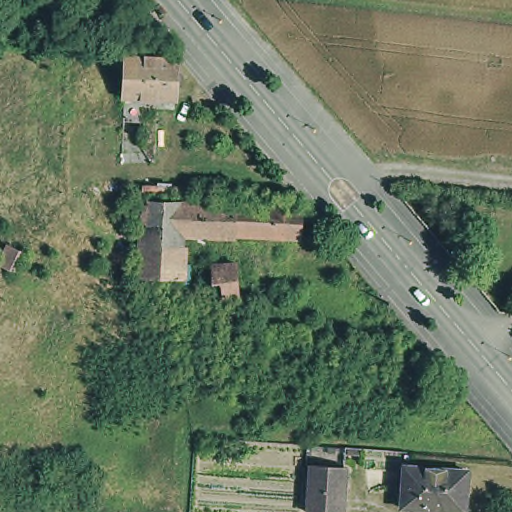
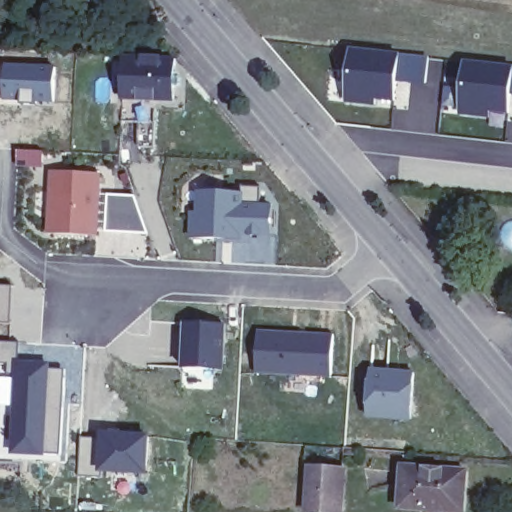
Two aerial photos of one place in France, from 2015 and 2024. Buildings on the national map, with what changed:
new [(430,57),(427,87),(402,84),(401,109),(350,105),(354,51),(430,57)]
unchanged [(180,62),(177,101),(127,98),(128,59),(180,62)]
new [(0,64),(55,65),(53,102),(0,99),(0,75),(0,64)]
new [(512,123),(460,120),(464,64),(512,66),(512,123)]
new [(105,170),(103,233),(51,232),(51,169),(105,170)]
new [(245,188),(245,182),(262,183),(264,205),(271,205),(272,235),(204,233),(202,189),(245,188)]
new [(137,192),(147,230),(109,229),(108,192),(137,192)]
demolished [(188,227),(185,278),(145,276),(148,225),(130,225),(132,196),(150,199),(189,201),(188,227)]
demolished [(244,204),(243,229),(188,227),(189,201),(244,204)]
demolished [(310,209),(308,238),(243,235),(243,229),(244,204),(310,209)]
demolished [(197,306),(197,297),(207,298),(208,288),(208,269),(235,270),(234,289),(233,301),(210,301),(210,306),(197,306)]
new [(15,280),(15,321),(0,321),(0,278),(15,280)]
new [(231,371),(181,371),(180,320),(230,321),(231,371)]
new [(20,337),(19,354),(68,356),(66,447),(13,447),(15,367),(0,366),(0,335),(20,337)]
new [(333,337),(333,376),(256,372),(256,336),(333,337)]
new [(417,362),(415,427),(368,427),(372,361),(417,362)]
new [(149,432),(147,472),(108,471),(106,478),(82,477),(83,435),(149,432)]
unchanged [(435,509),(435,498),(405,496),(407,455),(471,460),(468,502),(453,500),(451,511),(435,509)]
unchanged [(315,507),(316,486),(317,461),(346,462),(345,488),(343,508),(315,507)]

